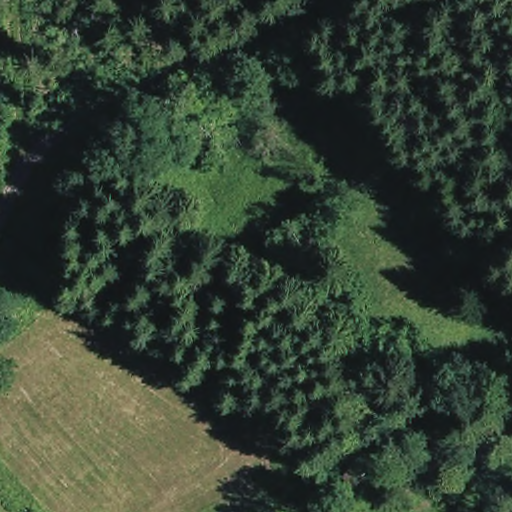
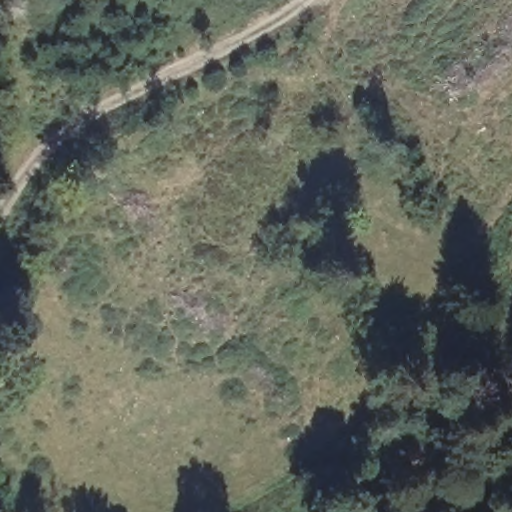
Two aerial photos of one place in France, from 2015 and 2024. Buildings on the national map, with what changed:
unchanged [(399,449),(423,437),(437,464),(415,476),(399,449)]

